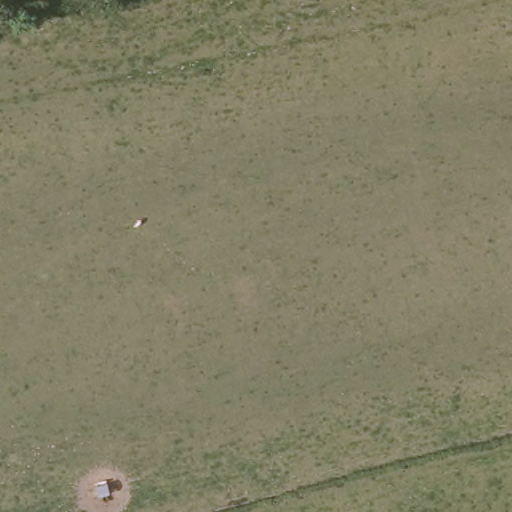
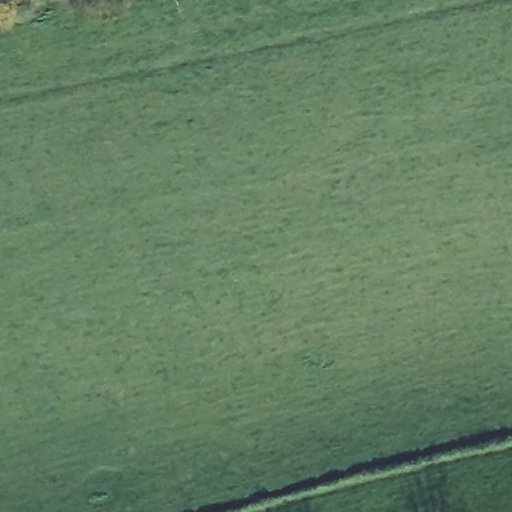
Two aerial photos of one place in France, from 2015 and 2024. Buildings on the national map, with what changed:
[]

